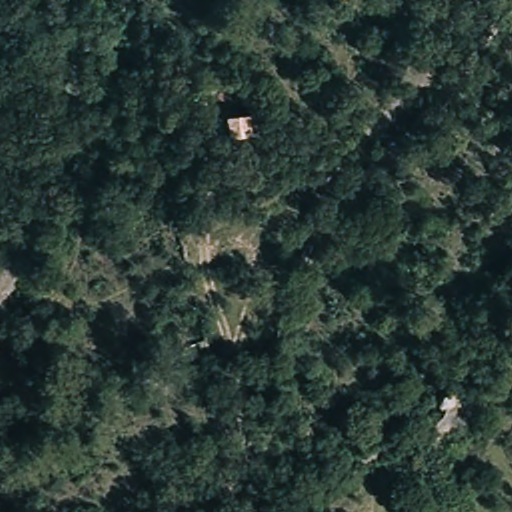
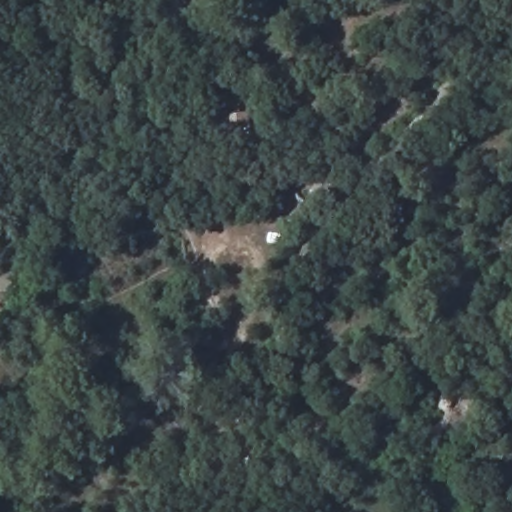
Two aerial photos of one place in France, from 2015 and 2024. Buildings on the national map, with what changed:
unchanged [(243,137),(225,141),(221,121),(240,118),(243,137)]

